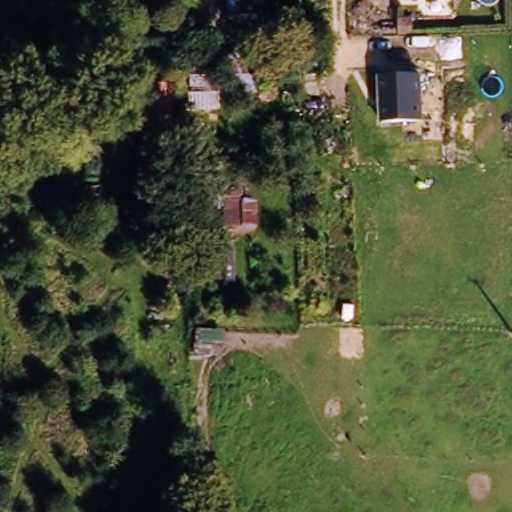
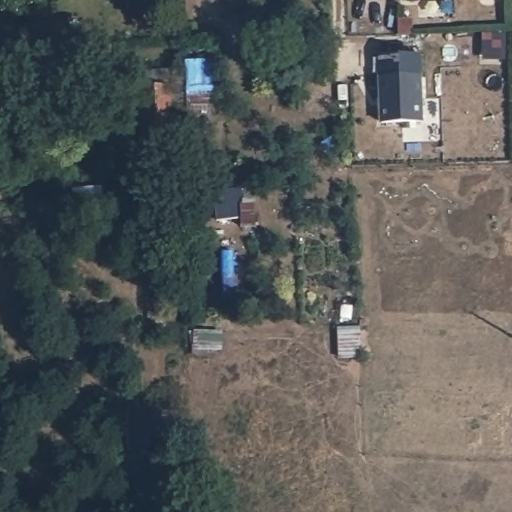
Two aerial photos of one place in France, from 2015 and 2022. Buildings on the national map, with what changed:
unchanged [(420,73),(424,121),(380,124),(377,74),(420,73)]
unchanged [(142,147),(136,85),(173,83),(175,142),(142,147)]

